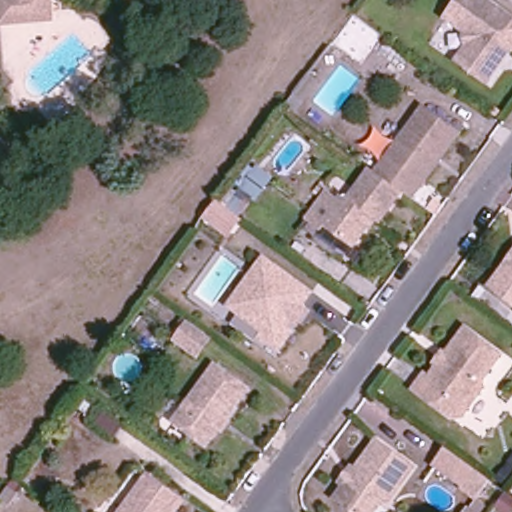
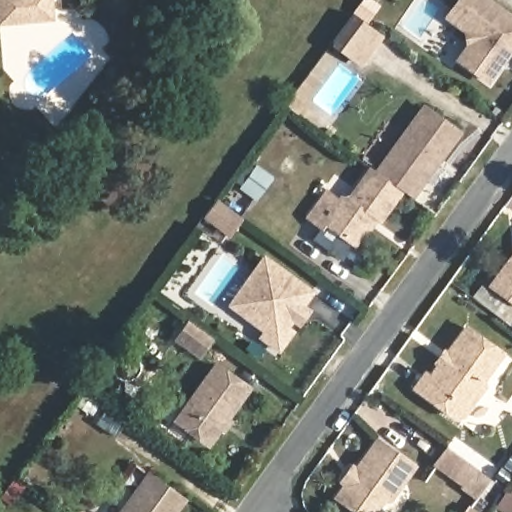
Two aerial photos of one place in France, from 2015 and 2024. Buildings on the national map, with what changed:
unchanged [(52,18),(0,23),(0,0),(52,0),(52,18)]
unchanged [(461,57),(470,44),(467,29),(449,15),(461,0),(492,0),(512,15),(512,49),(503,61),(489,79),(461,57)]
new [(348,17),(376,38),(356,65),(328,45),(348,17)]
unchanged [(459,132),(410,196),(400,189),(388,180),(376,170),(425,106),(459,132)]
unchanged [(255,204),(252,202),(240,217),(244,221),(228,237),(203,218),(216,201),(222,205),(236,185),(233,183),(249,162),(256,168),(258,165),(275,176),(255,204)]
unchanged [(367,223),(354,240),(325,217),(321,223),(308,213),(327,189),(338,197),(342,193),(347,197),(370,166),(376,170),(388,180),(400,189),(380,214),(371,226),(367,223)]
unchanged [(278,349),(260,336),(265,329),(229,303),(263,256),(310,290),(301,302),(308,307),(300,319),(293,314),(287,323),(293,328),(278,349)]
unchanged [(512,257),(512,297),(493,284),(512,257)]
unchanged [(198,357),(176,341),(189,324),(195,329),(211,340),(198,357)]
unchanged [(483,343),(498,354),(479,381),(480,386),(460,416),(451,417),(411,388),(421,373),(427,377),(437,363),(434,361),(437,357),(441,351),(444,355),(462,328),(483,343)]
unchanged [(202,441),(199,439),(176,422),(216,367),(248,391),(226,421),(231,425),(225,431),(221,428),(216,434),(212,440),(208,445),(202,441)]
unchanged [(391,500),(384,501),(376,512),(358,512),(337,497),(347,484),(344,482),(354,467),(358,469),(378,441),(414,467),(391,500)]
unchanged [(446,447),(488,479),(473,500),(431,467),(446,447)]
unchanged [(175,512),(119,512),(148,475),(183,502),(175,512)]

